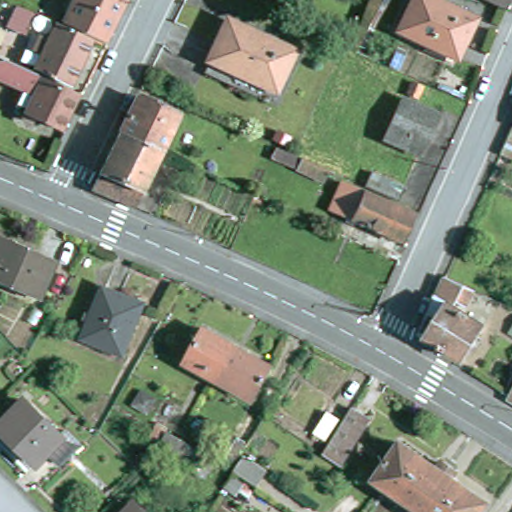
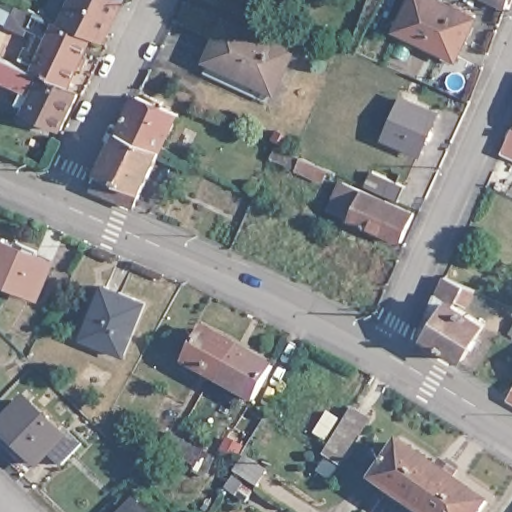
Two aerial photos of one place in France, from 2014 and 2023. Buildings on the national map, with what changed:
unchanged [(110,42),(70,23),(81,0),(125,0),(129,2),(110,42)]
unchanged [(125,0),(130,0),(129,2),(125,0)]
unchanged [(477,20),(461,57),(404,30),(417,0),(436,0),(477,20)]
unchanged [(512,17),(477,0),(512,0),(512,17)]
unchanged [(41,16),(31,39),(13,30),(22,7),(41,16)]
unchanged [(298,53),(279,90),(217,60),(233,22),(298,53)]
unchanged [(77,90),(43,73),(49,58),(40,54),(46,40),(56,45),(64,27),(98,44),(77,90)]
unchanged [(84,100),(68,135),(40,122),(38,127),(29,123),(34,115),(23,110),(30,95),(3,82),(0,89),(0,60),(84,100)]
unchanged [(183,117),(166,153),(125,134),(143,97),(183,117)]
unchanged [(441,118),(424,157),(392,142),(408,103),(441,118)]
unchanged [(166,153),(141,211),(99,192),(125,134),(166,153)]
unchanged [(507,157),(512,144),(512,160),(507,157)]
unchanged [(329,190),(303,178),(306,168),(334,180),(329,190)]
unchanged [(371,197),(378,182),(410,197),(404,212),(371,197)]
unchanged [(419,224),(407,253),(358,230),(355,234),(349,232),(351,227),(336,220),(348,192),(419,224)]
unchanged [(58,265),(43,298),(0,279),(0,241),(58,265)]
unchanged [(474,293),(467,309),(457,305),(456,310),(486,330),(463,363),(421,337),(421,336),(447,279),(474,293)]
unchanged [(146,313),(121,361),(84,340),(108,294),(146,313)]
unchanged [(276,368),(258,404),(188,364),(206,330),(276,368)]
unchanged [(512,378),(512,403),(502,397),(512,378)]
unchanged [(63,429),(75,442),(55,462),(43,450),(31,461),(0,430),(0,419),(20,397),(57,434),(63,429)]
unchanged [(364,428),(339,475),(323,465),(349,418),(364,428)]
unchanged [(198,473),(166,454),(159,464),(146,457),(161,429),(173,437),(171,440),(204,459),(198,473)]
unchanged [(425,512),(379,479),(404,442),(442,468),(446,462),(460,472),(456,478),(492,504),(487,512),(425,512)]
unchanged [(246,468),(266,482),(258,497),(236,483),(246,468)]
unchanged [(133,512),(138,507),(143,512),(133,512)]

